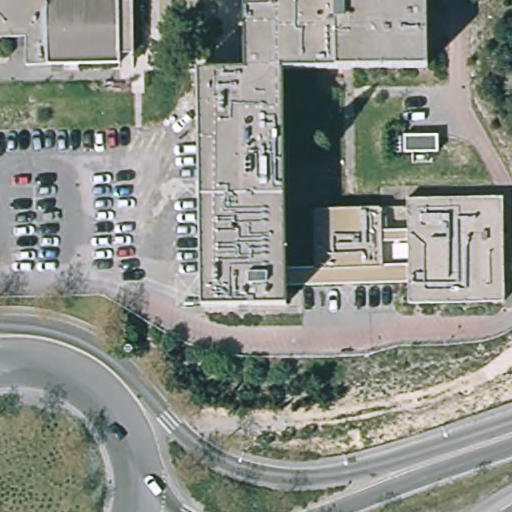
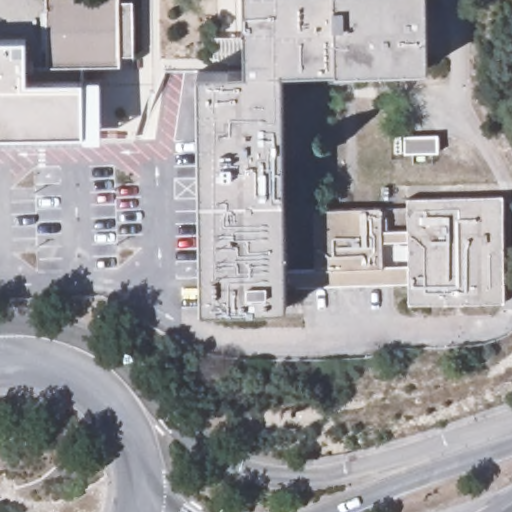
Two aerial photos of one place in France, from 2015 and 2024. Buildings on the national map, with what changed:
unchanged [(119,53),(120,64),(26,65),(26,36),(0,37),(0,0),(132,0),(132,53),(119,53)]
unchanged [(202,306),(198,70),(244,70),(244,0),(425,0),(427,66),(282,69),(286,271),(286,289),(286,305),(202,306)]
new [(26,65),(83,64),(83,78),(100,77),(102,137),(83,137),(83,133),(0,135),(0,37),(26,36),(26,65)]
unchanged [(434,137),(434,155),(400,155),(400,138),(434,137)]
unchanged [(286,271),(311,270),(309,212),(377,210),(378,233),(403,233),(403,200),(499,199),(499,305),(404,306),(404,285),(286,289),(286,271)]

